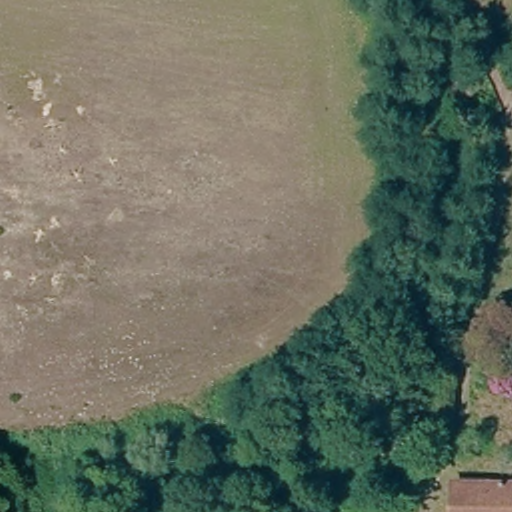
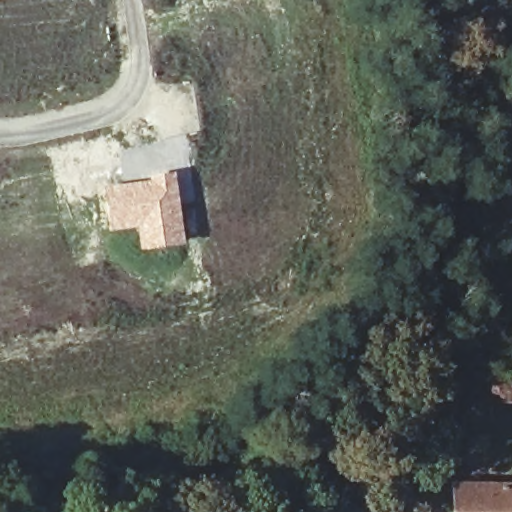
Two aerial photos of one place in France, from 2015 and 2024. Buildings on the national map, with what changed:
new [(108,231),(102,187),(149,181),(148,176),(174,172),(183,244),(139,250),(136,227),(108,231)]
unchanged [(512,512),(456,512),(456,488),(512,490),(512,512)]

